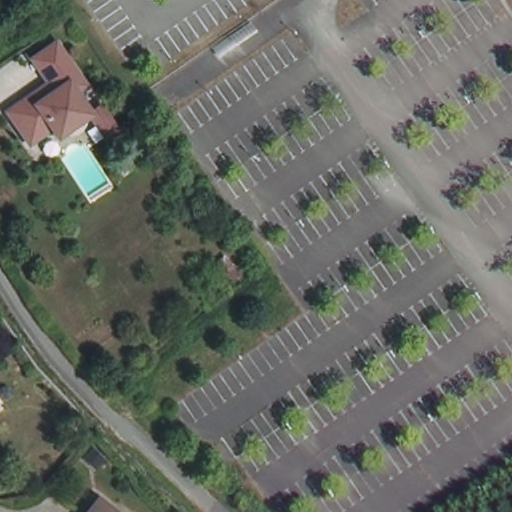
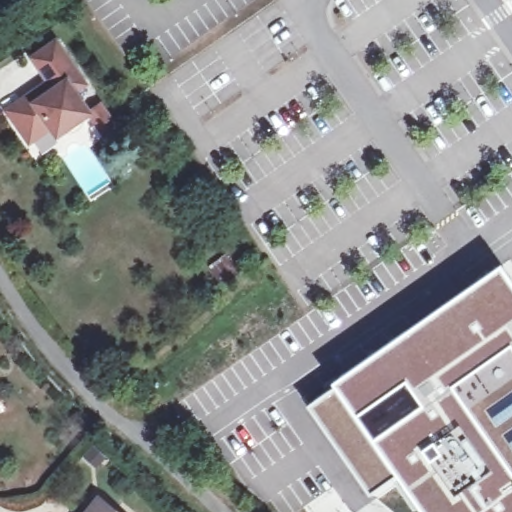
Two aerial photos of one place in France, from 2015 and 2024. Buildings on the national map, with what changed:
unchanged [(92,121),(85,111),(53,134),(47,125),(25,140),(2,108),(35,85),(44,79),(35,66),(27,55),(52,38),(60,49),(82,82),(72,89),(87,111),(97,103),(103,113),(92,121)]
new [(395,481),(397,479),(397,478),(372,435),(417,403),(405,388),(362,420),(332,384),(330,382),(502,261),(512,276),(512,512),(418,512),(395,481)]
new [(332,384),(362,420),(372,435),(397,478),(395,481),(371,499),(305,404),(332,384)]
unchanged [(83,507),(87,510),(102,492),(125,512),(80,512),(83,507)]

